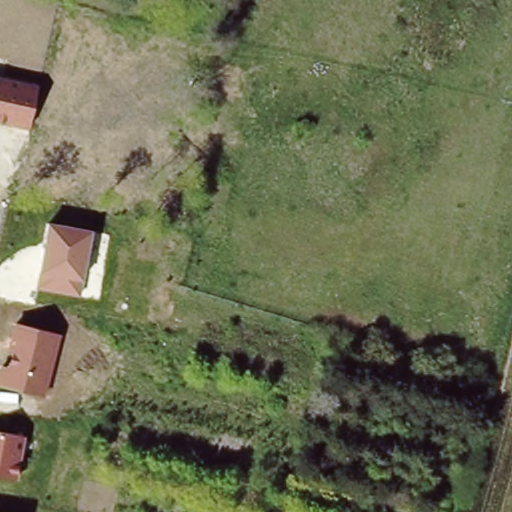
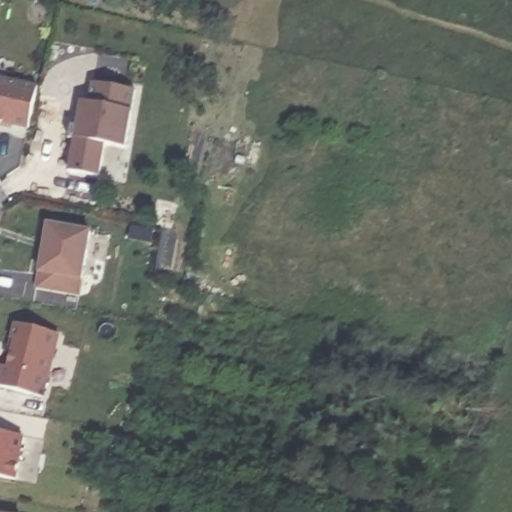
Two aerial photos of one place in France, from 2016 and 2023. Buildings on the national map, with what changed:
unchanged [(38,85),(29,130),(0,124),(0,77),(38,85)]
new [(84,104),(92,106),(95,85),(138,92),(128,150),(108,147),(103,180),(72,175),(84,104)]
unchanged [(40,277),(49,224),(92,232),(83,280),(79,297),(38,288),(40,277)]
unchanged [(2,363),(7,365),(11,347),(10,347),(15,323),(60,333),(45,397),(0,386),(0,371),(2,363)]
unchanged [(25,438),(18,480),(0,477),(0,433),(25,438)]

